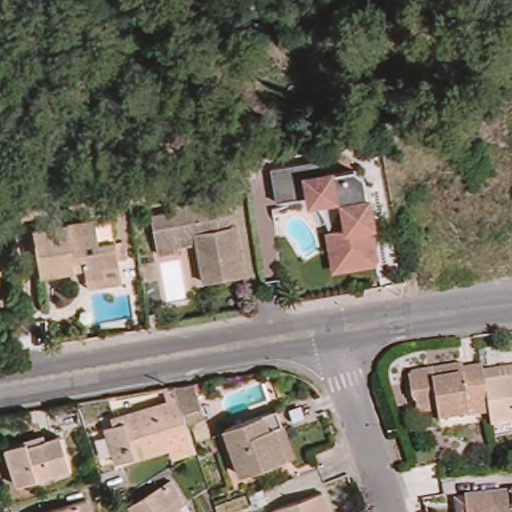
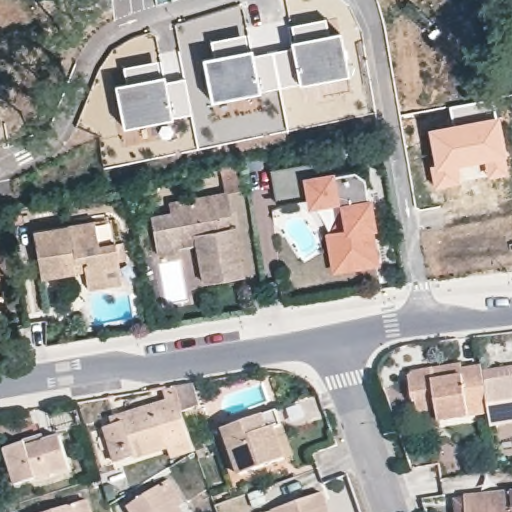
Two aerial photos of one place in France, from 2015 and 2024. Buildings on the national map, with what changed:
new [(349,74),(297,85),(210,102),(201,56),(212,54),(210,40),(246,32),(250,46),(252,52),(290,45),(288,39),(291,38),(288,24),(325,16),(328,30),(339,28),(349,74)]
new [(183,75),(192,113),(122,128),(113,82),(125,80),(121,66),(159,59),(158,54),(177,50),(182,71),(167,75),(168,76),(183,75)]
new [(448,105),(491,97),(494,112),(497,111),(508,172),(485,176),(482,163),(458,168),(461,181),(433,187),(429,165),(432,164),(426,127),(451,121),(448,105)]
unchanged [(268,170),(321,163),(323,173),(351,170),(363,182),(369,199),(373,232),(377,267),(331,275),(325,232),(342,229),(337,205),(303,209),(302,200),(274,205),(268,170)]
unchanged [(147,200),(129,204),(127,194),(146,190),(147,200)]
unchanged [(179,251),(158,255),(152,218),(170,214),(168,205),(187,201),(229,194),(232,215),(226,216),(229,229),(234,227),(242,276),(205,283),(196,244),(179,246),(179,251)]
unchanged [(113,286),(93,289),(91,279),(90,270),(79,271),(46,277),(40,232),(101,222),(117,220),(120,242),(125,267),(127,285),(113,286)]
unchanged [(9,316),(0,318),(0,260),(9,316)]
unchanged [(420,393),(417,393),(415,375),(420,370),(436,366),(462,362),(463,367),(483,365),(485,380),(488,399),(471,402),(472,413),(443,418),(441,407),(423,410),(420,393)]
unchanged [(488,399),(485,380),(512,376),(512,420),(492,423),(488,399)]
unchanged [(117,469),(106,433),(115,431),(113,426),(122,423),(179,406),(173,391),(174,388),(194,385),(200,405),(180,410),(189,437),(192,447),(170,453),(117,469)]
unchanged [(286,460),(243,474),(235,450),(222,454),(215,431),(227,427),(278,410),(284,425),(285,425),(295,456),(286,460)]
unchanged [(70,470),(17,485),(6,450),(25,445),(42,438),(44,444),(60,440),(70,470)]
unchanged [(172,477),(193,512),(137,512),(130,502),(172,477)]
unchanged [(325,488),(332,510),(333,512),(278,512),(275,505),(325,488)]
unchanged [(470,500),(512,494),(512,512),(462,512),(460,501),(470,500)]
unchanged [(90,512),(55,512),(87,502),(90,512)]

